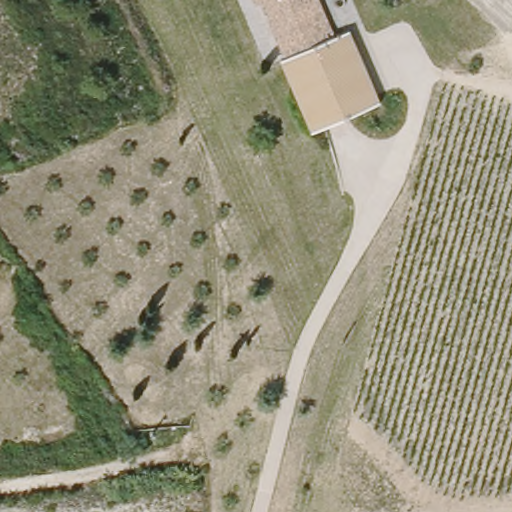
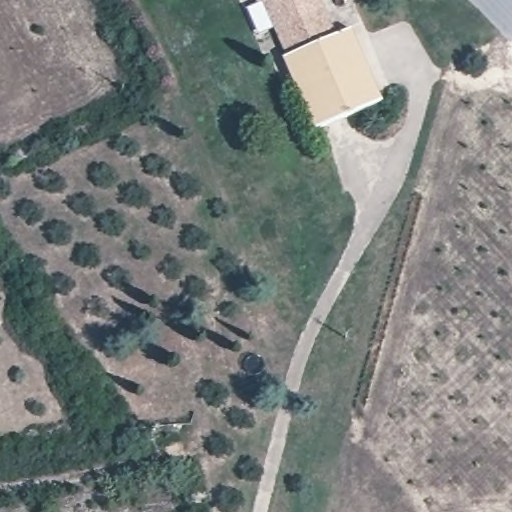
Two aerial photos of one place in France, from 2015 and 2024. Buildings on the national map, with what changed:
unchanged [(323,11),(333,35),(286,58),(262,5),(257,7),(254,0),(318,0),(323,11)]
unchanged [(333,35),(351,27),(383,101),(312,130),(282,60),(286,58),(333,35)]

